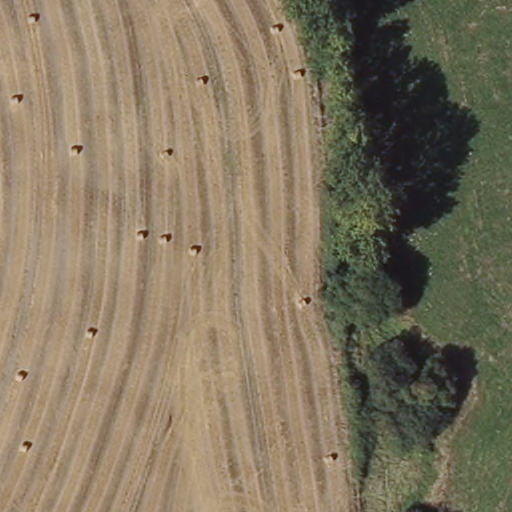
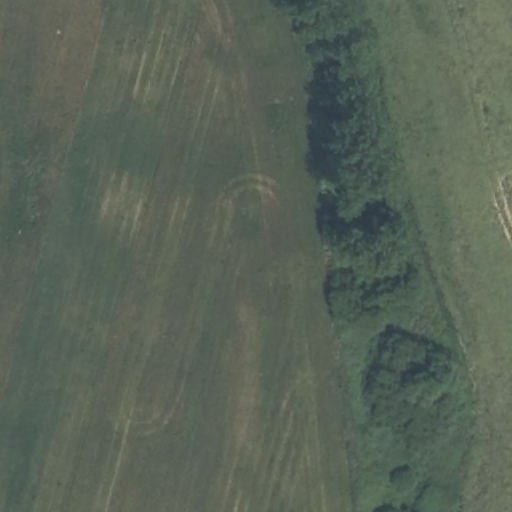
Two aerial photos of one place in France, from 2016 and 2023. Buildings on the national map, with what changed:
[]

